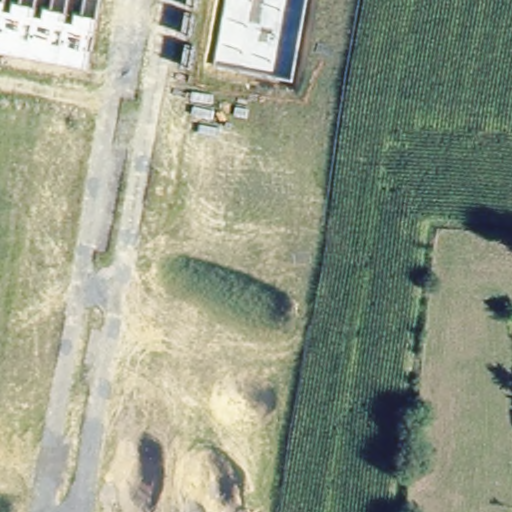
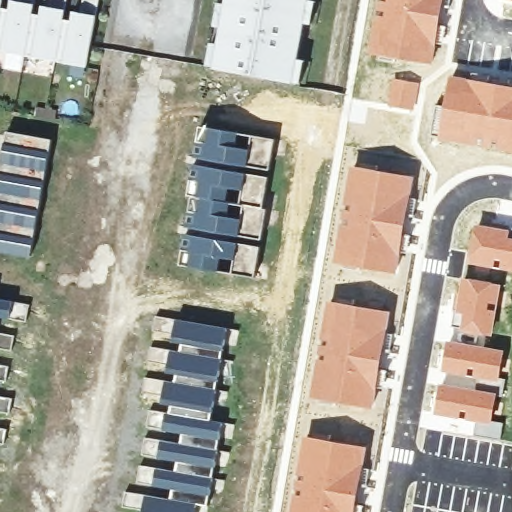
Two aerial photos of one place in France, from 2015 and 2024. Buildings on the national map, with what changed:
new [(10,7),(12,0),(20,0),(36,0),(33,12),(41,14),(43,5),(51,6),(52,0),(68,0),(64,18),(72,20),(74,10),(82,12),(84,0),(100,0),(87,66),(85,77),(71,75),(74,64),(56,60),(54,71),(40,68),(42,57),(25,54),(23,65),(10,62),(13,51),(0,49),(0,0),(4,0),(2,6),(10,7)]
new [(296,84),(296,85),(216,70),(216,68),(223,29),(217,28),(221,5),(228,6),(229,0),(312,0),(311,2),(318,4),(314,26),(307,25),(300,61),(307,62),(303,85),(296,84)]
new [(445,0),(434,64),(369,54),(379,0),(445,0)]
new [(484,5),(484,0),(498,0),(497,1),(484,5)]
new [(512,0),(512,3),(497,1),(498,0),(512,0)]
new [(436,105),(443,106),(449,75),(512,86),(512,151),(489,149),(437,137),(438,131),(432,130),(436,105)]
new [(392,78),(420,83),(414,110),(387,105),(392,78)]
new [(268,280),(256,278),(181,265),(187,234),(202,236),(203,230),(189,226),(193,196),(190,195),(195,165),(210,167),(211,160),(196,157),(201,126),(276,140),(288,141),(285,157),(273,155),(271,170),(239,165),(238,172),(270,178),(266,194),(279,195),(276,210),(280,212),(278,226),(266,224),(263,240),(231,235),(229,241),(262,247),(259,262),(271,265),(268,280)]
new [(31,258),(0,252),(0,172),(7,132),(53,141),(31,258)]
new [(351,165),(414,176),(397,272),(334,260),(351,165)]
new [(475,224),(512,230),(512,271),(467,262),(475,224)]
new [(462,277),(501,283),(492,335),(451,325),(462,277)]
new [(27,322),(0,317),(0,299),(30,305),(27,322)]
new [(328,300),(391,311),(373,408),(311,396),(328,300)]
new [(144,510),(124,507),(126,492),(172,500),(174,489),(138,483),(141,465),(177,471),(179,461),(143,455),(146,438),(182,444),(183,433),(148,427),(151,410),(178,415),(179,406),(163,403),(164,396),(144,393),(146,378),(183,384),(185,375),(168,372),(169,366),(149,362),(151,347),(188,353),(190,345),(174,342),(175,335),(154,331),(156,316),(228,328),(239,330),(237,346),(225,344),(223,360),(234,361),(231,377),(220,375),(217,390),(229,392),(226,408),(215,406),(212,421),(224,423),(235,425),(233,440),(221,437),(219,450),(230,452),(228,467),(216,465),(214,478),(226,480),(223,495),(211,493),(209,506),(208,512),(144,512),(144,510)]
new [(13,351),(0,349),(0,333),(15,336),(13,351)]
new [(447,340),(505,350),(498,385),(441,371),(447,340)]
new [(7,382),(0,381),(0,365),(10,367),(7,382)]
new [(451,421),(452,419),(433,414),(440,381),(498,392),(492,421),(503,423),(500,440),(456,431),(442,425),(444,420),(451,421)]
new [(11,414),(0,412),(0,396),(13,399),(11,414)]
new [(5,445),(0,444),(0,428),(8,430),(5,445)]
new [(292,497),(304,435),(367,446),(355,512),(291,512),(292,497)]

